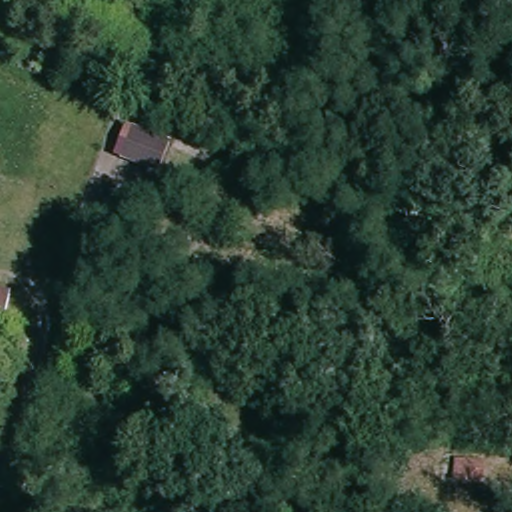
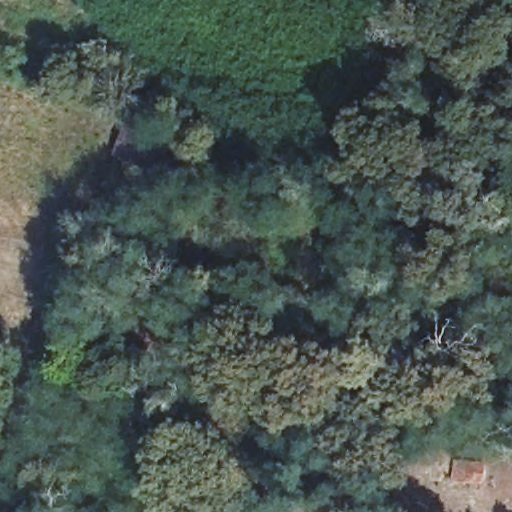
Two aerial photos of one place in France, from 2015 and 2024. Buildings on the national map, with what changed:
new [(114,155),(125,127),(169,144),(159,172),(114,155)]
demolished [(0,325),(0,291),(8,293),(0,325)]
unchanged [(492,453),(488,477),(447,471),(452,446),(492,453)]

